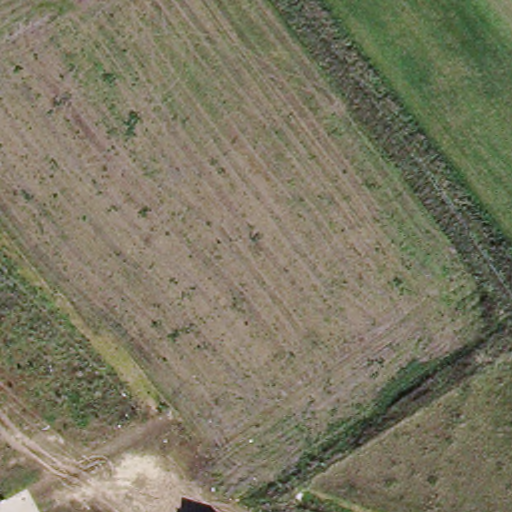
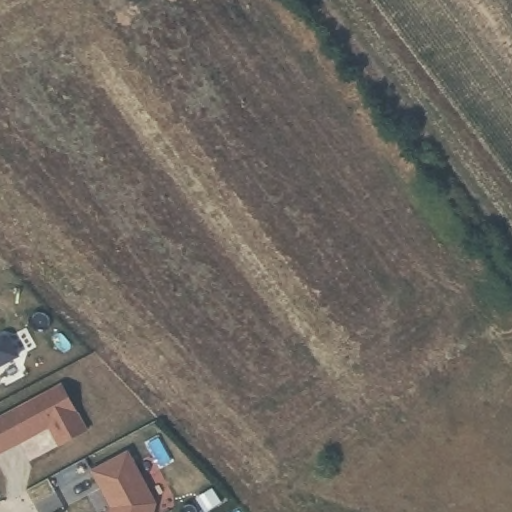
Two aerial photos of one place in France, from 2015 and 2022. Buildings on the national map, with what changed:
new [(58,386),(82,432),(58,445),(48,426),(0,451),(0,416),(58,386)]
new [(127,451),(154,502),(151,512),(110,512),(112,504),(109,498),(107,500),(91,470),(127,451)]

